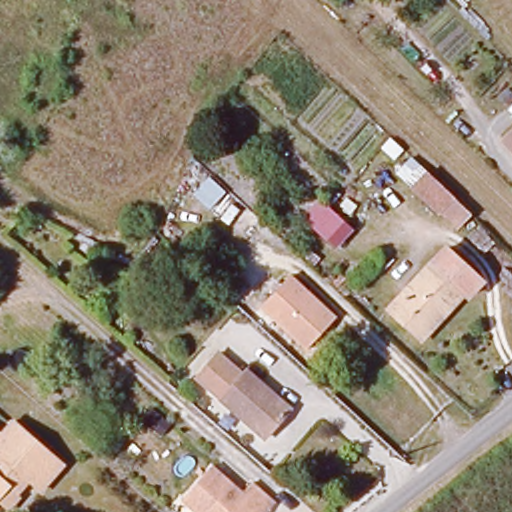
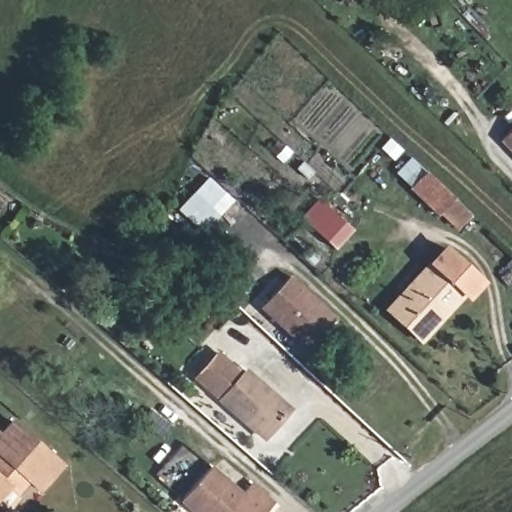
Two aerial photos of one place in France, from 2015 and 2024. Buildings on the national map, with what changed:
unchanged [(512,128),(512,150),(501,139),(512,128)]
unchanged [(465,216),(454,229),(408,191),(421,174),(465,216)]
unchanged [(467,297),(463,294),(420,338),(390,309),(447,251),(480,283),(467,297)]
unchanged [(292,276),(335,317),(305,349),(262,309),(292,276)]
unchanged [(237,376),(242,371),(289,412),(260,440),(193,379),(215,356),(237,376)]
unchanged [(57,469),(36,493),(26,484),(12,497),(5,490),(0,495),(0,455),(2,454),(0,451),(0,434),(2,436),(13,424),(57,469)]
unchanged [(261,512),(191,512),(177,500),(204,468),(237,495),(245,484),(268,503),(261,512)]

